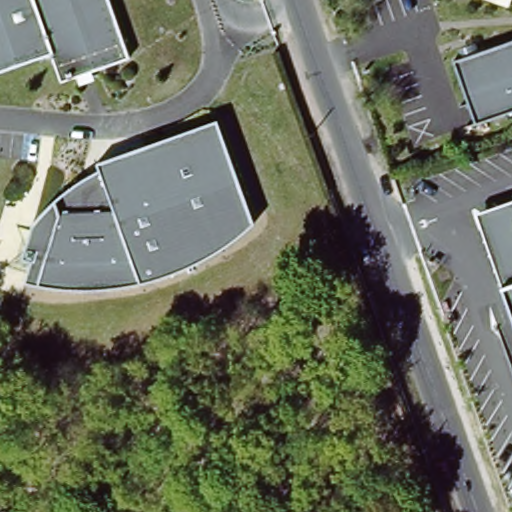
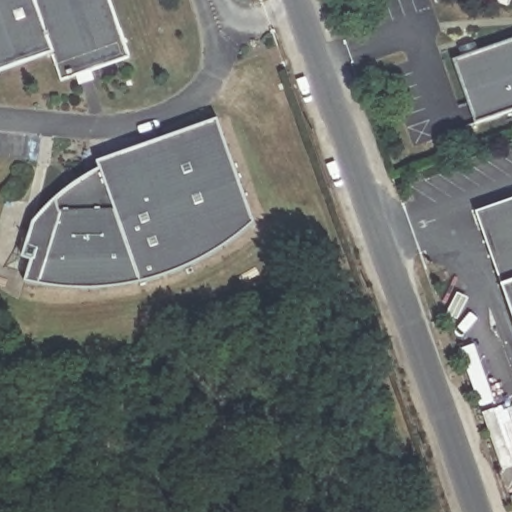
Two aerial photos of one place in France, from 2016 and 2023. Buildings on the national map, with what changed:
unchanged [(127,58),(61,83),(49,51),(0,70),(0,0),(106,0),(127,58)]
unchanged [(506,11),(480,0),(510,0),(506,11)]
unchanged [(475,122),(454,62),(454,60),(512,40),(512,109),(475,122)]
unchanged [(217,122),(256,225),(216,256),(146,286),(115,291),(30,285),(34,263),(24,260),(32,227),(52,205),(100,174),(98,165),(217,122)]
unchanged [(502,283),(477,211),(512,199),(512,310),(502,283)]

